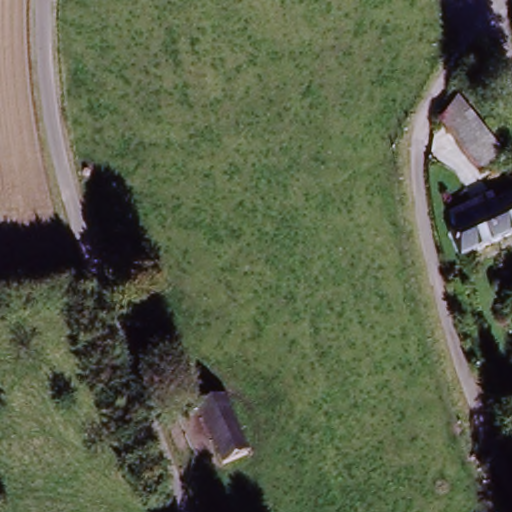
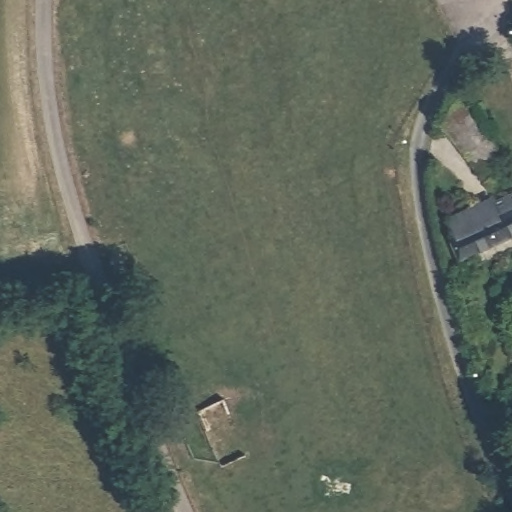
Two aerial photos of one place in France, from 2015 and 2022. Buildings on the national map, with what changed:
unchanged [(493,157),(469,176),(437,131),(455,104),(493,157)]
unchanged [(467,262),(455,238),(448,221),(485,204),(487,211),(512,197),(512,241),(467,262)]
unchanged [(220,467),(211,437),(203,415),(228,406),(236,428),(247,458),(220,467)]

